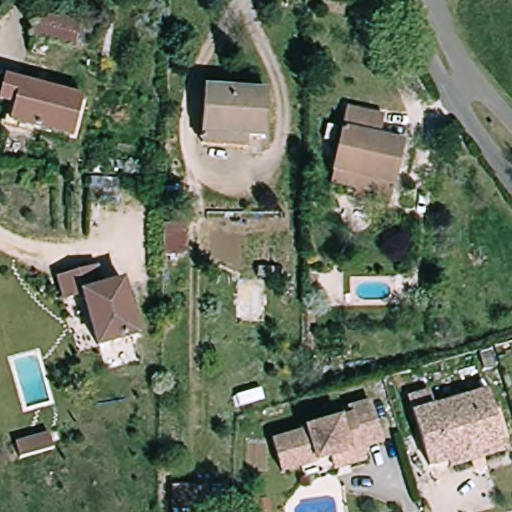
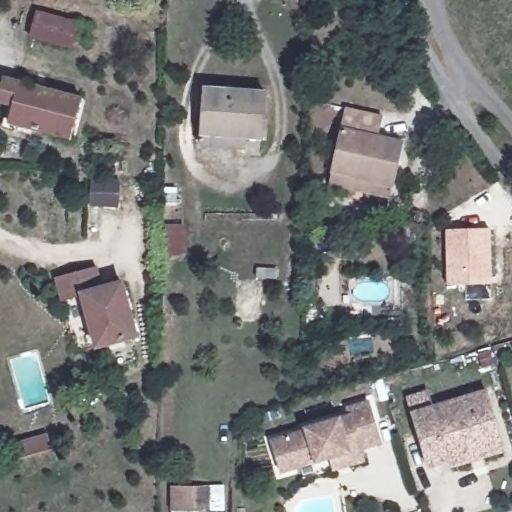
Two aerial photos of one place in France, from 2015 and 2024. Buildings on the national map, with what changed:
unchanged [(78,24),(71,50),(30,39),(37,12),(78,24)]
unchanged [(74,141),(14,124),(18,108),(3,105),(11,78),(25,82),(85,99),(74,141)]
unchanged [(199,146),(201,136),(205,87),(267,92),(262,141),(246,140),(246,150),(199,146)]
unchanged [(333,185),(336,174),(352,110),(388,120),(385,136),(407,142),(396,189),(394,199),(333,185)]
new [(447,285),(445,230),(491,228),(492,284),(447,285)]
unchanged [(136,336),(96,346),(83,293),(63,298),(58,276),(96,266),(102,287),(122,282),(136,336)]
unchanged [(431,393),(436,405),(487,390),(502,439),(451,455),(453,462),(431,469),(410,399),(431,393)]
unchanged [(283,477),(274,446),(308,436),(309,433),(351,421),(349,413),(371,406),(383,448),(361,455),(364,466),(335,474),(332,463),(318,466),(304,471),(283,477)]
unchanged [(46,433),(50,447),(16,456),(13,442),(46,433)]
unchanged [(191,512),(172,511),(172,487),(210,487),(225,487),(225,512),(191,512)]

